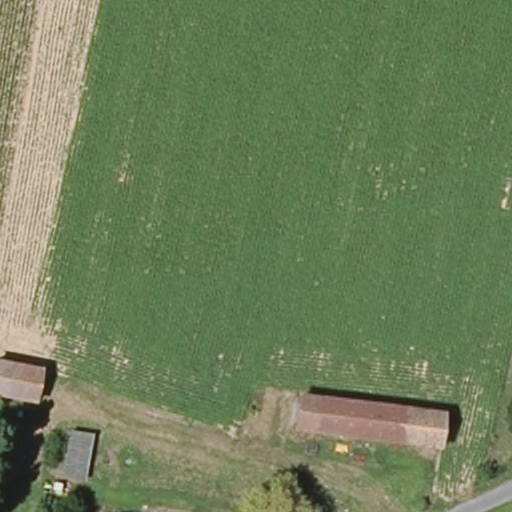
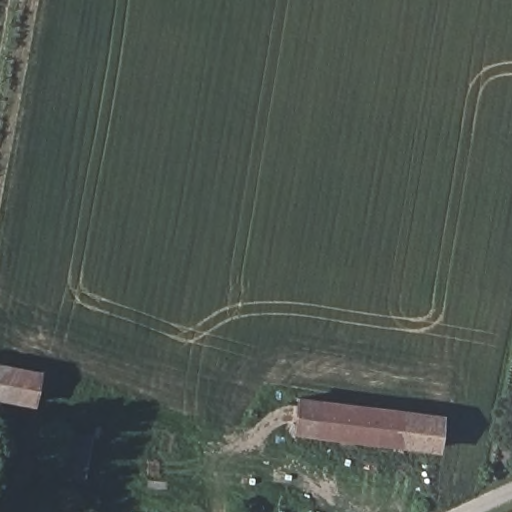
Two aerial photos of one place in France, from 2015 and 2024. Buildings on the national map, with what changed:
unchanged [(0,398),(0,364),(37,371),(33,404),(0,398)]
unchanged [(448,417),(440,451),(291,431),(295,399),(448,417)]

